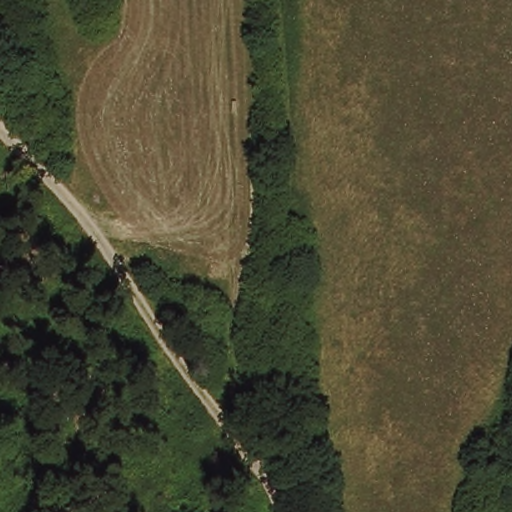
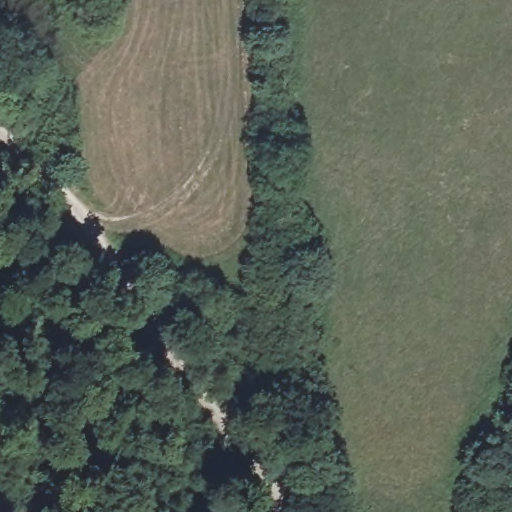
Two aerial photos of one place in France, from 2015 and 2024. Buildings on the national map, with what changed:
unchanged [(158,387),(146,395),(136,380),(148,372),(158,387)]

